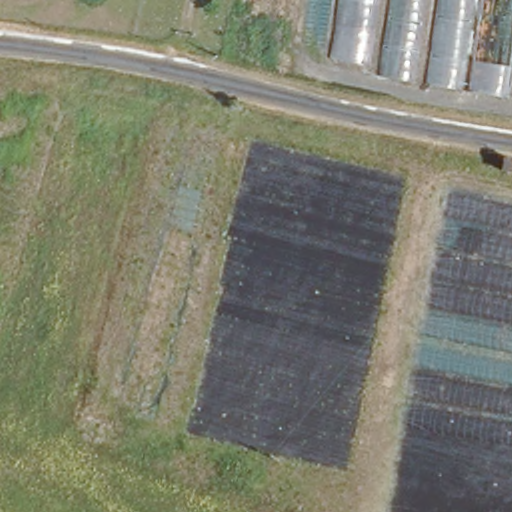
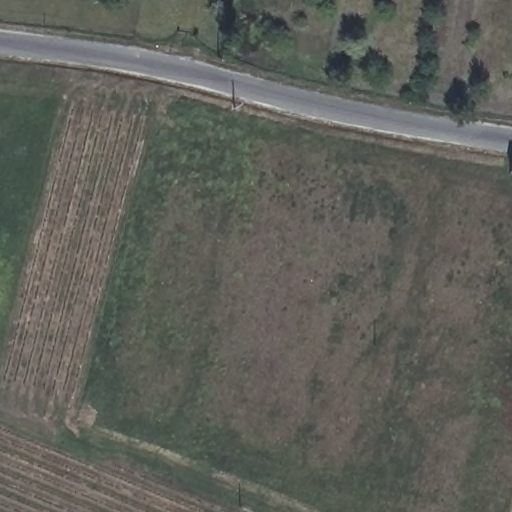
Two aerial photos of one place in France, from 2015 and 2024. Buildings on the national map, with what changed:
demolished [(371,71),(383,0),(512,0),(512,93),(371,71)]

